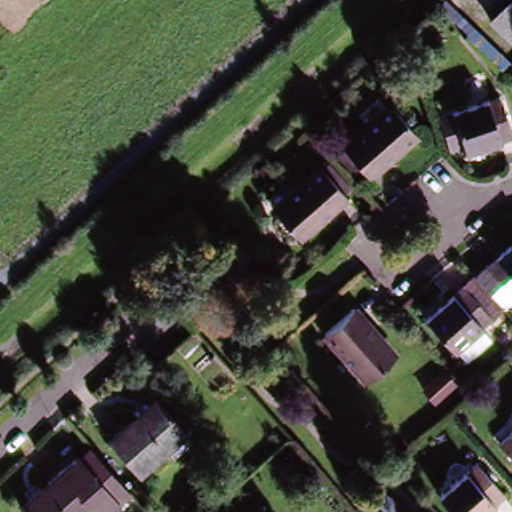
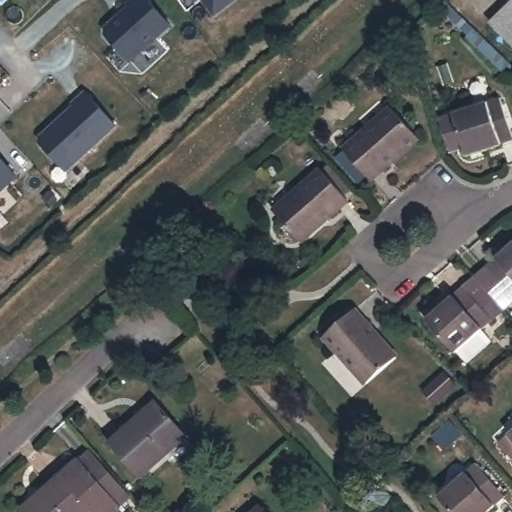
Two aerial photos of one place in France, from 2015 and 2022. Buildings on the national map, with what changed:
new [(130,8),(128,6),(135,0),(145,0),(170,29),(130,64),(102,31),(130,8)]
new [(203,0),(232,0),(214,14),(203,0)]
unchanged [(512,13),(512,33),(502,23),(512,13)]
new [(37,141),(74,107),(72,105),(85,94),(115,128),(66,173),(37,141)]
unchanged [(500,145),(455,159),(440,118),(486,103),(500,145)]
unchanged [(412,138),(366,180),(341,152),(387,109),(412,138)]
new [(17,179),(0,194),(0,160),(17,179)]
unchanged [(343,202),(297,245),(271,218),(318,174),(343,202)]
unchanged [(478,271),(512,240),(512,302),(509,304),(478,271)]
unchanged [(420,325),(457,292),(465,284),(474,294),(495,316),(487,323),(449,358),(420,325)]
unchanged [(388,362),(358,386),(317,341),(345,314),(388,362)]
unchanged [(187,440),(140,482),(108,445),(154,404),(187,440)]
unchanged [(512,428),(512,466),(492,445),(512,428)]
unchanged [(122,509),(118,512),(20,512),(18,511),(77,458),(122,509)]
unchanged [(498,503),(488,512),(451,512),(439,499),(471,471),(498,503)]
unchanged [(259,508),(263,512),(254,512),(259,508)]

